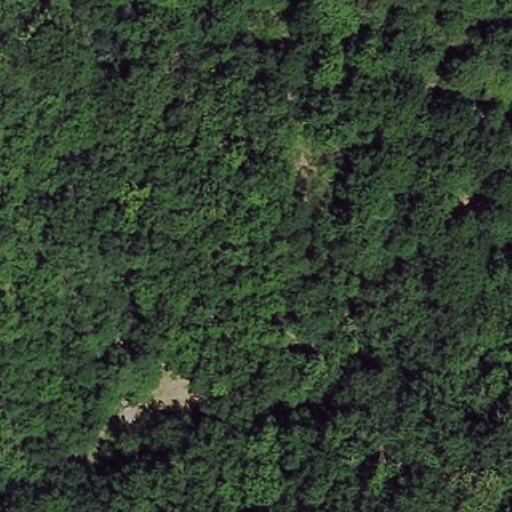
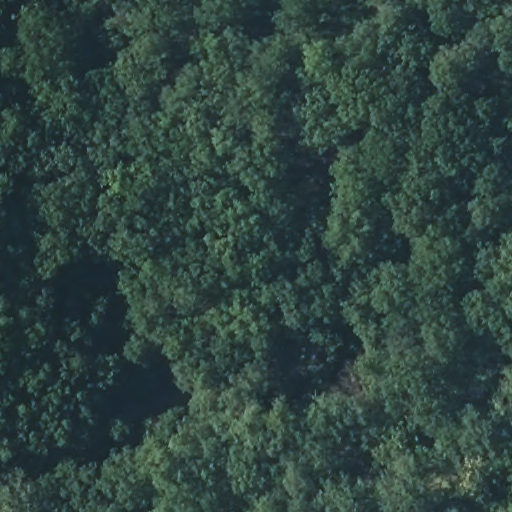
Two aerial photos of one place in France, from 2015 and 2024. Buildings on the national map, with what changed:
unchanged [(371,150),(370,136),(369,130),(386,129),(387,147),(371,150)]

